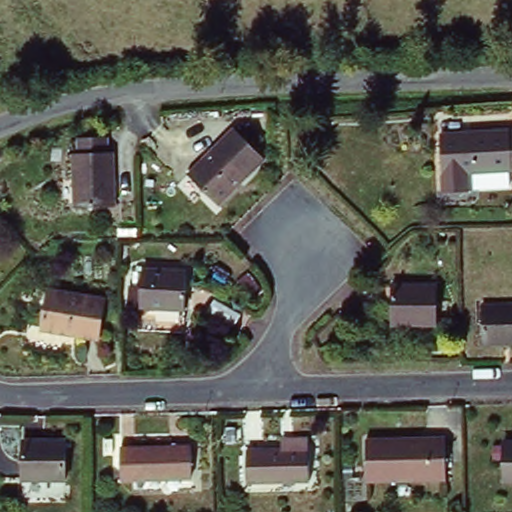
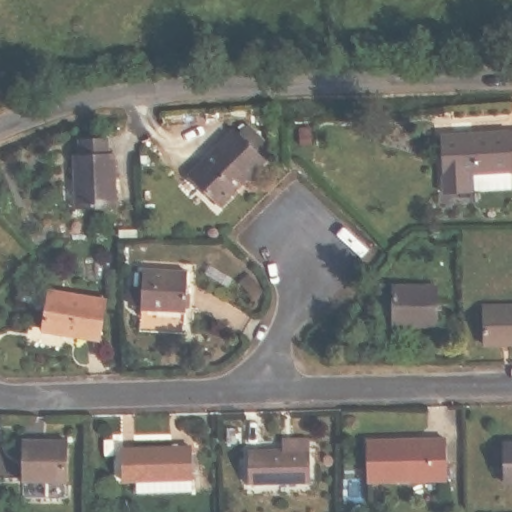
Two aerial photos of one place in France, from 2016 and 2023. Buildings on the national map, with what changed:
unchanged [(512,125),(512,181),(473,182),(473,185),(447,187),(444,129),(512,125)]
unchanged [(232,128),(240,136),(248,128),(262,143),(254,151),(262,158),(217,203),(186,173),(232,128)]
unchanged [(110,131),(112,146),(117,145),(119,199),(79,201),(76,147),(81,148),(81,133),(110,131)]
unchanged [(190,265),(189,305),(144,302),(146,263),(190,265)]
unchanged [(439,280),(439,319),(395,319),(396,279),(439,280)]
unchanged [(107,292),(102,331),(46,323),(51,284),(107,292)]
unchanged [(512,305),(512,342),(480,343),(479,306),(512,305)]
unchanged [(233,426),(234,442),(226,442),(225,426),(233,426)]
unchanged [(246,480),(245,450),(280,450),(280,437),(306,436),(305,449),(307,479),(246,480)]
unchanged [(427,438),(444,437),(445,478),(365,480),(364,439),(410,438),(427,438)]
unchanged [(64,440),(63,479),(20,479),(20,440),(64,440)]
unchanged [(512,441),(512,480),(503,480),(502,441),(512,441)]
unchanged [(189,446),(189,475),(120,478),(119,449),(189,446)]

